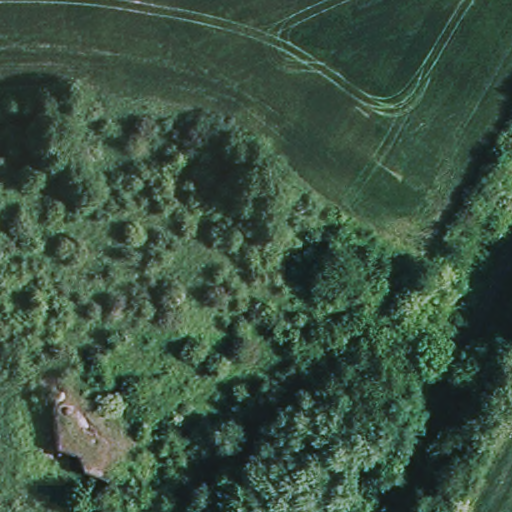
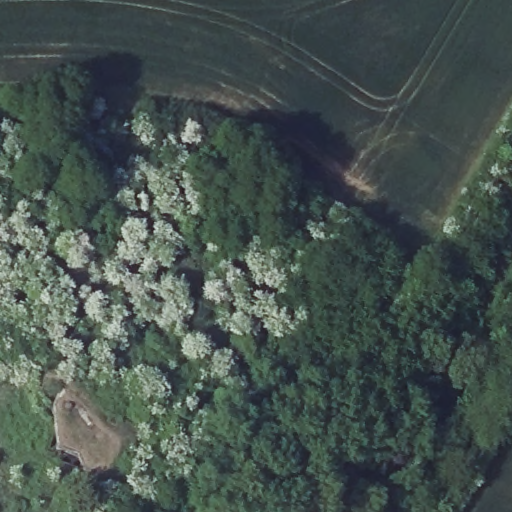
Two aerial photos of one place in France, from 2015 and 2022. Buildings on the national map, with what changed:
unchanged [(80,459),(55,450),(48,403),(66,387),(100,412),(120,443),(102,472),(95,478),(80,459)]

